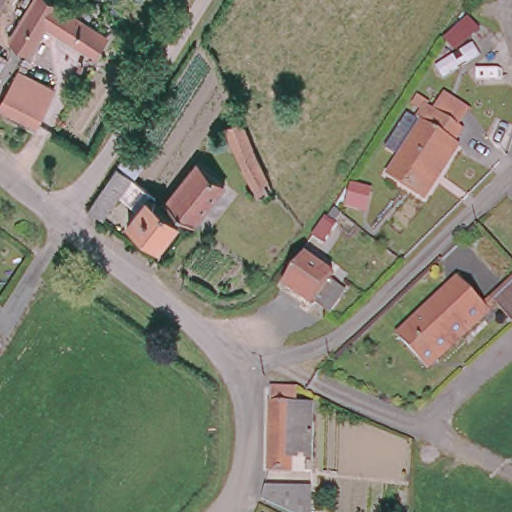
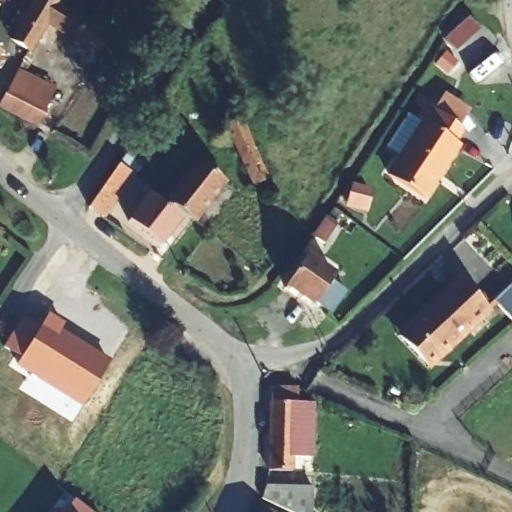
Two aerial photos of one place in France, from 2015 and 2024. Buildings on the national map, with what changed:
unchanged [(0,1),(0,0),(1,0),(0,1)]
unchanged [(47,24),(29,55),(5,39),(33,0),(47,0),(49,1),(85,25),(87,21),(95,26),(92,31),(105,38),(93,56),(47,24)]
unchanged [(1,56),(0,57),(0,55),(1,56)]
unchanged [(20,65),(56,85),(35,128),(0,108),(0,103),(20,65)]
unchanged [(399,153),(385,146),(390,138),(408,113),(417,116),(420,107),(410,101),(416,92),(431,101),(429,105),(436,109),(446,91),(471,109),(461,126),(465,128),(457,141),(460,143),(424,200),(387,174),(399,153)]
unchanged [(256,192),(251,183),(224,125),(240,117),(268,177),(271,185),(256,192)]
unchanged [(142,163),(135,173),(117,161),(125,150),(142,163)]
unchanged [(198,156),(226,180),(195,223),(167,198),(198,156)]
unchanged [(150,192),(147,195),(178,220),(157,245),(127,220),(138,206),(120,191),(101,216),(86,206),(115,165),(150,192)]
unchanged [(334,209),(343,215),(321,243),(312,237),(334,209)]
unchanged [(319,305),(308,298),(306,301),(277,283),(298,251),(327,268),(324,274),(340,284),(325,309),(319,305)]
unchanged [(428,367),(398,335),(461,279),(491,310),(428,367)]
unchanged [(512,321),(495,302),(512,287),(512,321)]
new [(66,324),(62,331),(110,361),(81,407),(15,365),(47,313),(66,324)]
new [(3,347),(22,317),(38,327),(19,358),(3,347)]
unchanged [(296,389),(296,402),(312,402),(312,453),(291,453),(292,470),(267,472),(270,387),(296,387),(296,389)]
unchanged [(311,471),(305,472),(305,462),(312,461),(311,471)]
unchanged [(265,484),(312,485),(311,512),(287,512),(261,500),(265,484)]
new [(75,499),(91,512),(65,512),(75,499)]
new [(56,508),(61,512),(53,512),(56,508)]

